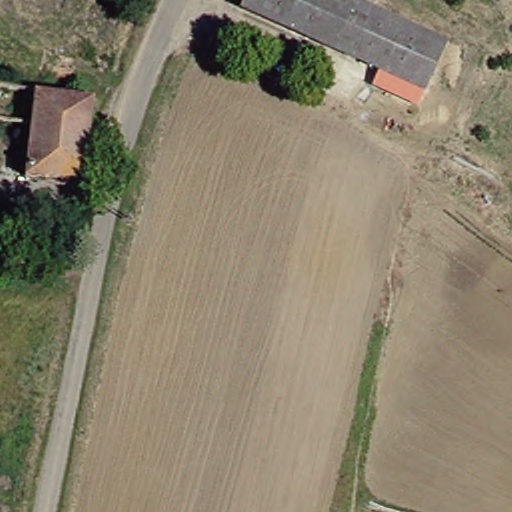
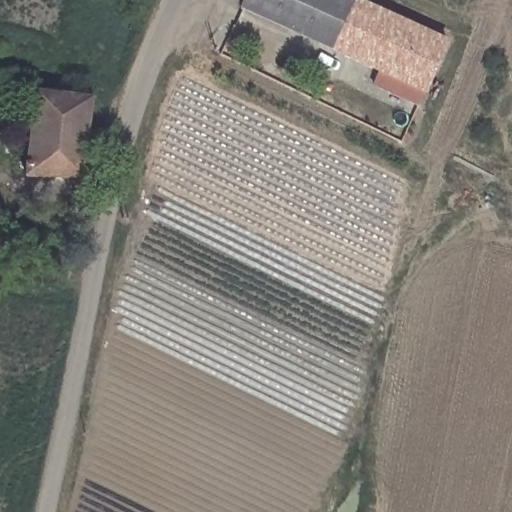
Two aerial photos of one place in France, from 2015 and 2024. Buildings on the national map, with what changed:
unchanged [(363,4),(452,45),(431,92),(251,10),(255,0),(365,0),(363,4)]
unchanged [(91,100),(81,179),(33,176),(46,96),(91,100)]

